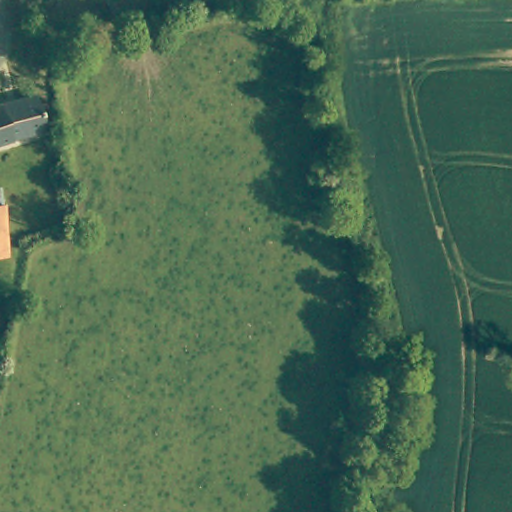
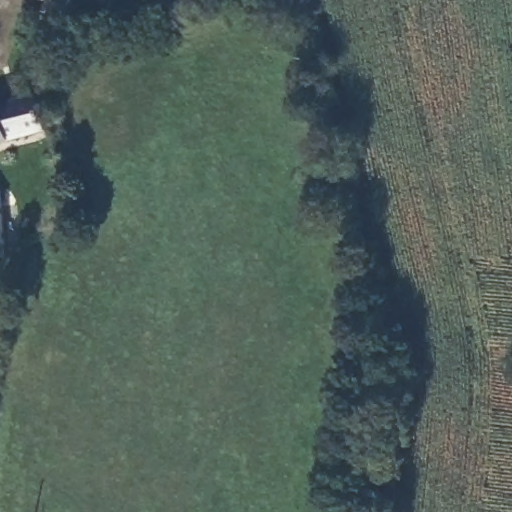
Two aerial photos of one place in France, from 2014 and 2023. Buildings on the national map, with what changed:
unchanged [(0,24),(0,0),(25,0),(29,14),(0,24)]
unchanged [(40,0),(64,0),(66,6),(43,11),(40,0)]
unchanged [(0,143),(0,107),(42,97),(50,130),(0,143)]
unchanged [(3,187),(3,253),(0,253),(0,187),(3,187)]

